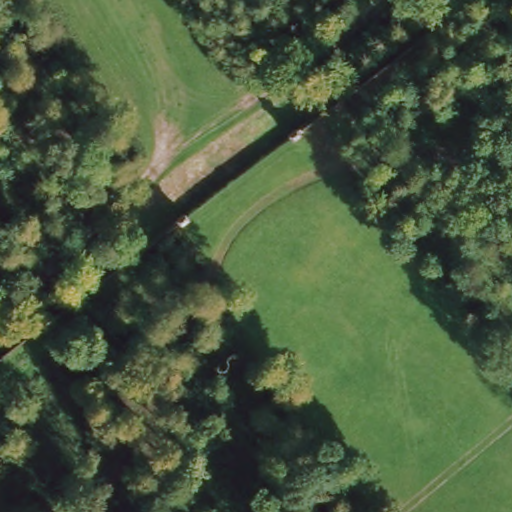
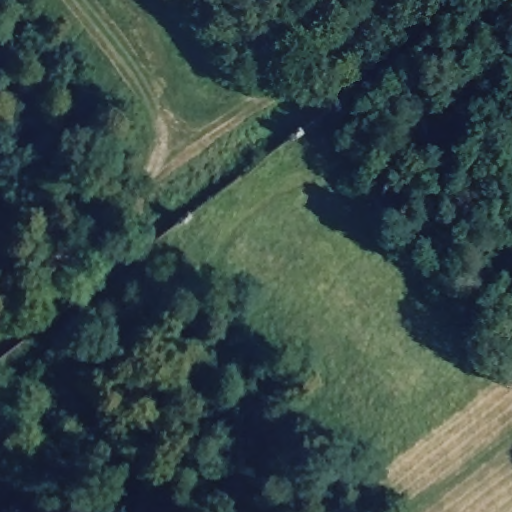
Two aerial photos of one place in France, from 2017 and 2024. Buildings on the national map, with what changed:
[]

